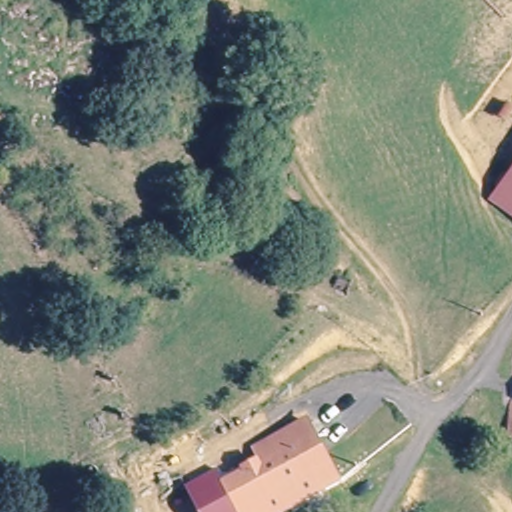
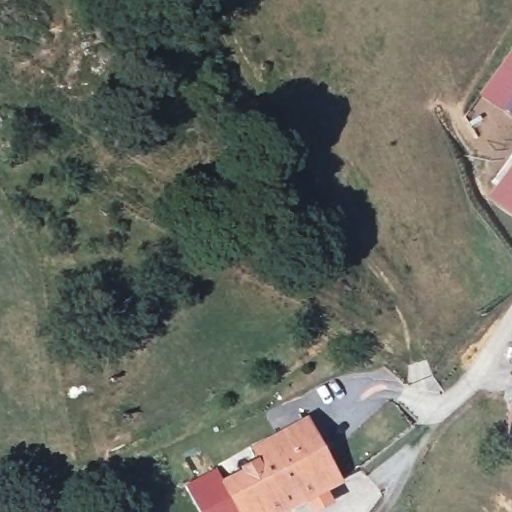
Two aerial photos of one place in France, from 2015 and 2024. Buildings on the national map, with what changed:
new [(512,119),(478,95),(512,46),(512,119)]
unchanged [(512,214),(491,201),(512,170),(512,214)]
unchanged [(512,415),(512,439),(507,439),(512,415)]
unchanged [(305,418),(340,480),(317,492),(306,471),(239,507),(225,481),(259,459),(253,447),(305,418)]
unchanged [(219,469),(225,481),(239,507),(306,471),(317,492),(280,512),(203,512),(188,487),(219,469)]

